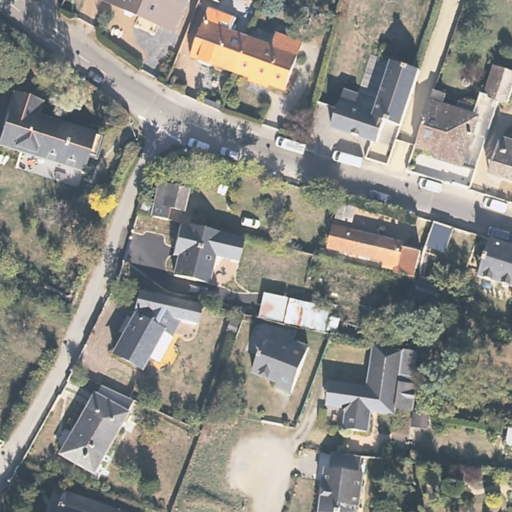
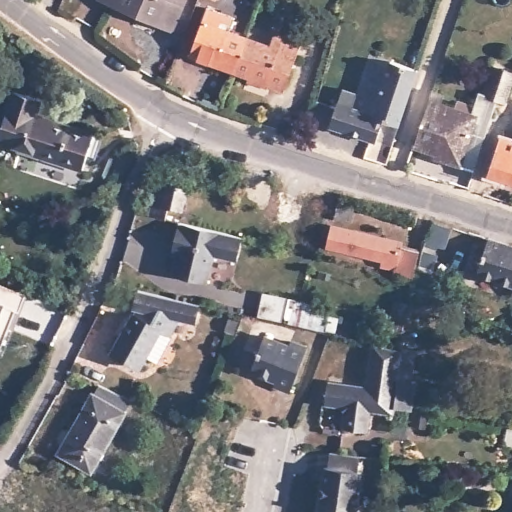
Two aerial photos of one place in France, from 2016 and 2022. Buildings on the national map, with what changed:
unchanged [(173,31),(110,2),(105,0),(187,0),(173,31)]
unchanged [(223,5),(209,1),(210,0),(224,0),(223,5)]
unchanged [(242,75),(198,59),(214,12),(226,16),(227,14),(240,19),(235,35),(254,42),(242,75)]
unchanged [(254,42),(278,50),(282,37),(307,45),(291,92),(273,86),(272,90),(254,84),(254,80),(242,75),(254,42)]
unchanged [(340,89),(354,94),(349,108),(370,115),(388,61),(415,70),(397,125),(380,120),(373,141),(327,125),(335,103),(340,89)]
unchanged [(512,72),(512,90),(508,103),(499,100),(496,109),(475,170),(439,158),(441,154),(411,145),(426,100),(459,111),(463,102),(478,108),(483,94),(486,95),(496,67),(512,72)]
unchanged [(44,100),(39,119),(70,129),(71,124),(105,134),(100,156),(94,154),(89,171),(2,144),(19,92),(44,100)]
unchanged [(492,168),(504,131),(512,133),(512,175),(492,168)]
unchanged [(199,189),(193,210),(182,208),(179,219),(161,215),(170,182),(199,189)]
unchanged [(237,263),(213,257),(206,283),(204,283),(172,275),(177,256),(171,255),(173,247),(180,222),(215,231),(243,238),(237,263)]
unchanged [(453,228),(447,245),(429,241),(434,223),(453,228)]
unchanged [(404,245),(403,248),(421,252),(414,278),(396,273),(396,270),(384,267),(384,261),(330,248),(336,226),(404,245)]
unchanged [(512,247),(512,286),(478,276),(489,240),(512,247)]
new [(23,309),(20,308),(4,350),(0,349),(0,280),(30,291),(23,309)]
unchanged [(254,288),(321,303),(320,310),(337,316),(334,333),(249,318),(254,288)]
unchanged [(510,296),(512,288),(512,297),(510,296)]
unchanged [(199,306),(202,307),(197,326),(181,323),(172,338),(174,340),(159,366),(148,359),(141,370),(115,355),(123,341),(122,340),(136,317),(138,318),(140,313),(137,312),(141,293),(199,306)]
unchanged [(283,354),(285,349),(303,357),(286,400),(269,393),(270,389),(247,380),(260,345),(283,354)]
unchanged [(409,393),(407,418),(389,415),(389,420),(366,415),(363,437),(339,433),(342,416),(335,410),(322,407),(326,385),(362,392),(369,348),(399,355),(401,355),(397,374),(407,375),(404,388),(404,391),(409,393)]
unchanged [(124,409),(91,470),(64,456),(98,395),(124,409)]
unchanged [(509,444),(511,427),(512,428),(512,445),(509,444)]
unchanged [(364,471),(367,471),(362,512),(324,512),(329,467),(333,467),(335,447),(366,451),(364,471)]
unchanged [(117,508),(128,512),(53,512),(64,484),(118,505),(117,508)]
unchanged [(395,496),(394,507),(384,506),(384,495),(395,496)]

